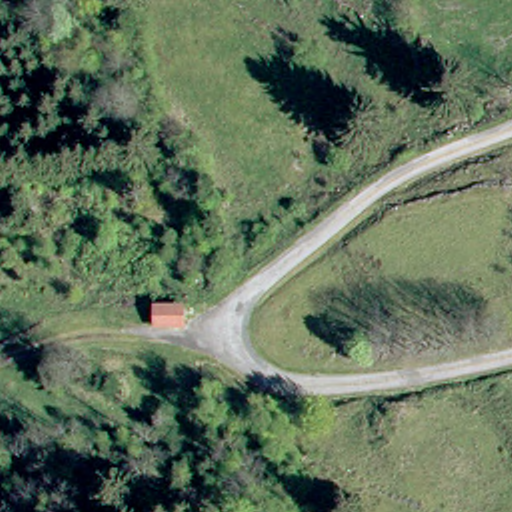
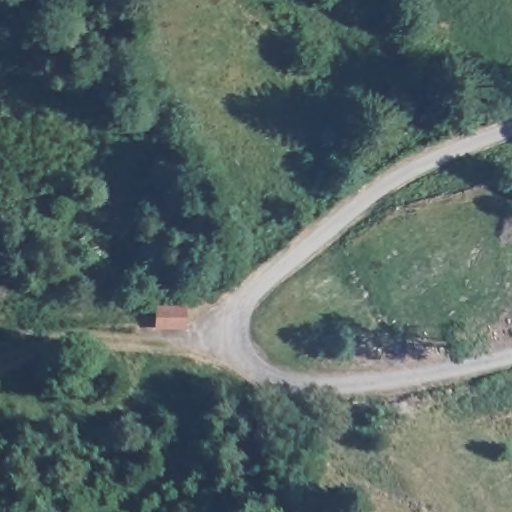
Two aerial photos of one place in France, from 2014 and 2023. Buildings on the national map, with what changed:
[]

